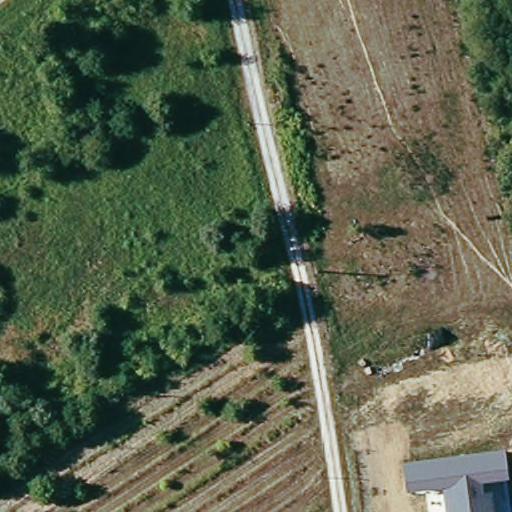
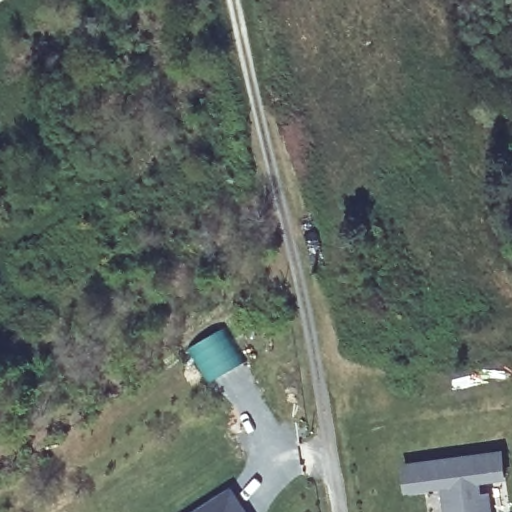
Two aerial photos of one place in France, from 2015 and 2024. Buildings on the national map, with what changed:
unchanged [(442,489),(407,494),(404,464),(505,448),(510,479),(482,484),(483,493),(491,494),(493,512),(445,512),(442,489)]
new [(232,483),(250,512),(188,512),(232,483)]

